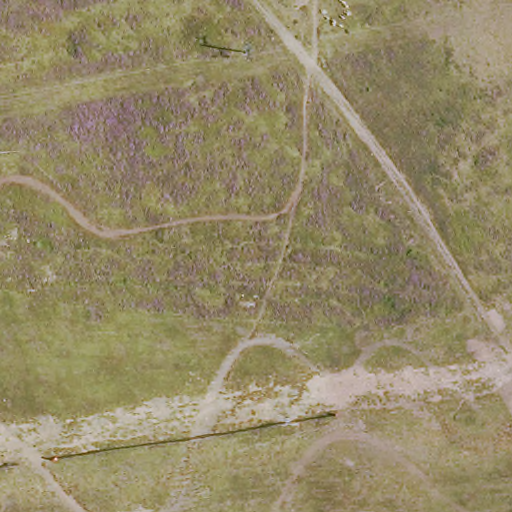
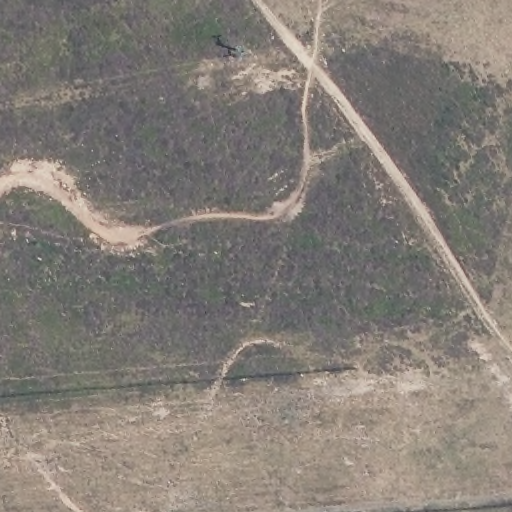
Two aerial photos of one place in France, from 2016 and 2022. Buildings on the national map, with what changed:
[]

